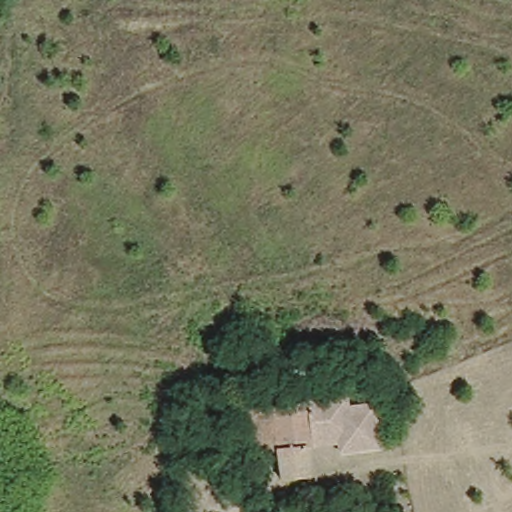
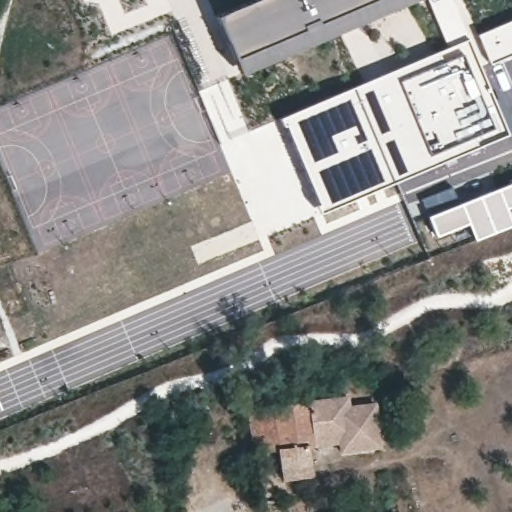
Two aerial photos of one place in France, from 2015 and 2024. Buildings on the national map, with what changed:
new [(217,51),(214,17),(255,0),(413,0),(239,73),(217,51)]
new [(508,135),(319,212),(317,207),(319,205),(286,127),(283,127),(279,117),(447,47),(427,0),(449,0),(467,40),(508,135)]
new [(489,63),(477,34),(512,19),(512,53),(489,63)]
new [(512,225),(512,226),(474,242),(467,225),(435,237),(427,214),(421,198),(452,187),(458,202),(512,182),(512,206),(507,208),(512,225)]
unchanged [(378,443),(336,448),(335,438),(340,437),(335,393),(345,392),(346,400),(372,397),(378,443)]
unchanged [(340,437),(335,438),(304,442),(307,472),(279,475),(274,445),(251,447),(246,404),(335,393),(340,437)]

